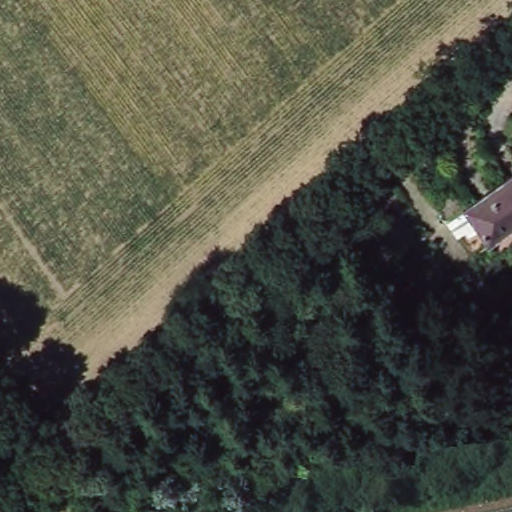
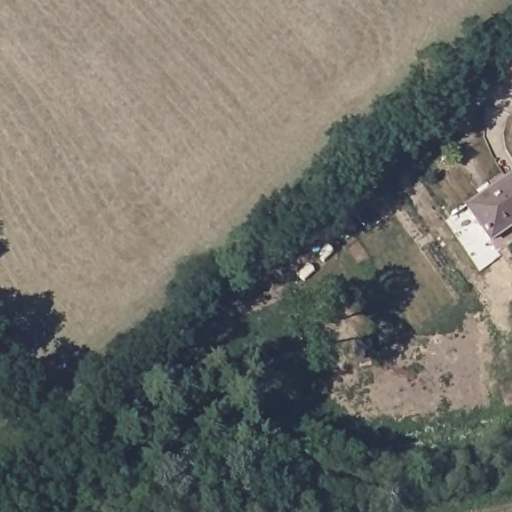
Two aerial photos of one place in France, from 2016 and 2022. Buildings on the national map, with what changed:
unchanged [(512,223),(486,241),(461,206),(512,171),(512,223)]
unchanged [(5,481),(0,486),(0,477),(5,481)]

